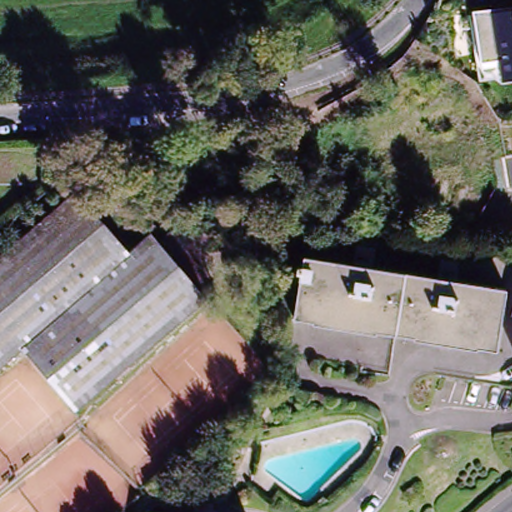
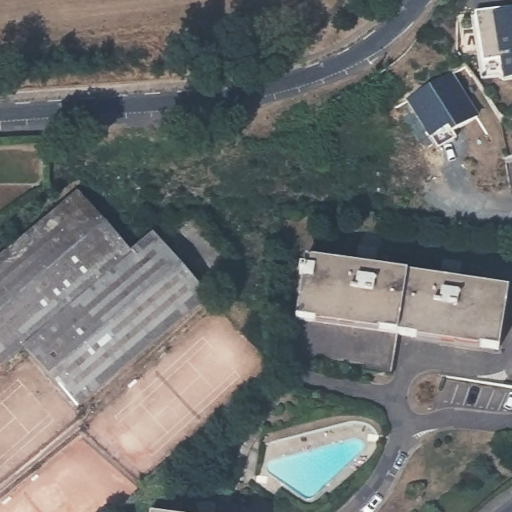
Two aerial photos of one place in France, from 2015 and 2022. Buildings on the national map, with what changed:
unchanged [(497,60),(482,61),(477,13),(512,10),(512,80),(500,82),(497,60)]
new [(429,135),(407,99),(448,75),(474,117),(451,132),(437,147),(429,135)]
unchanged [(25,348),(1,368),(0,366),(0,261),(80,196),(132,259),(25,348)]
unchanged [(156,239),(209,302),(79,411),(29,353),(25,348),(132,259),(156,239)]
unchanged [(498,354),(395,339),(388,380),(358,375),(365,332),(293,322),(302,259),(355,267),(356,255),(371,257),(370,270),(440,281),(442,268),(456,270),(455,283),(507,290),(498,354)]
unchanged [(213,506),(212,512),(198,512),(200,504),(213,506)]
unchanged [(150,512),(150,511),(157,512),(150,512)]

